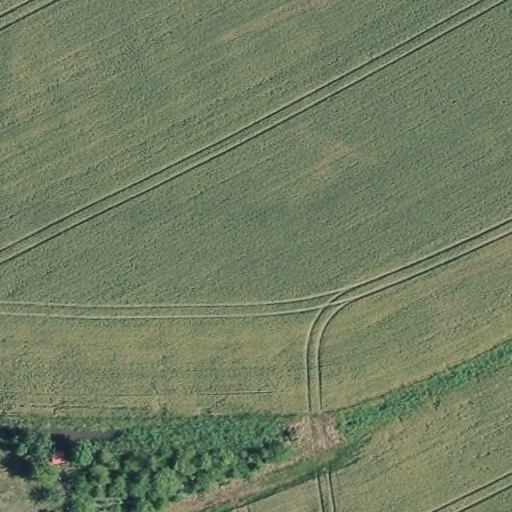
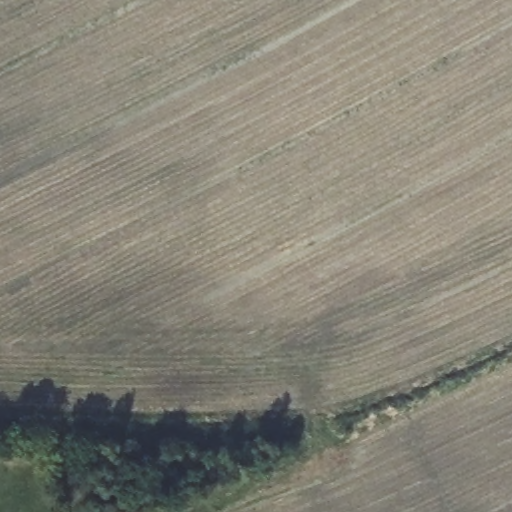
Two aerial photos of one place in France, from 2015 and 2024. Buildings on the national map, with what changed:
[]

